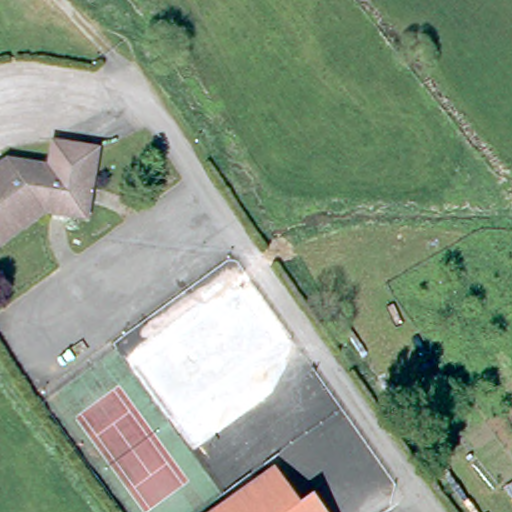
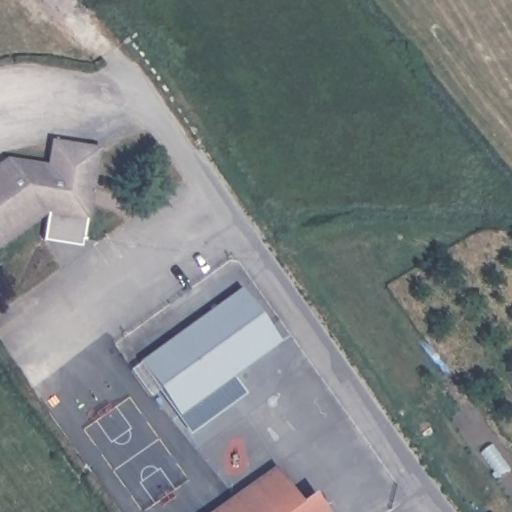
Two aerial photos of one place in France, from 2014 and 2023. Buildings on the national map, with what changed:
unchanged [(97,149),(81,216),(45,207),(0,234),(0,159),(7,155),(47,164),(52,139),(97,149)]
new [(190,434),(178,416),(140,362),(241,288),(280,342),(231,377),(245,394),(190,434)]
unchanged [(298,498),(311,489),(328,512),(204,512),(274,463),(298,498)]

